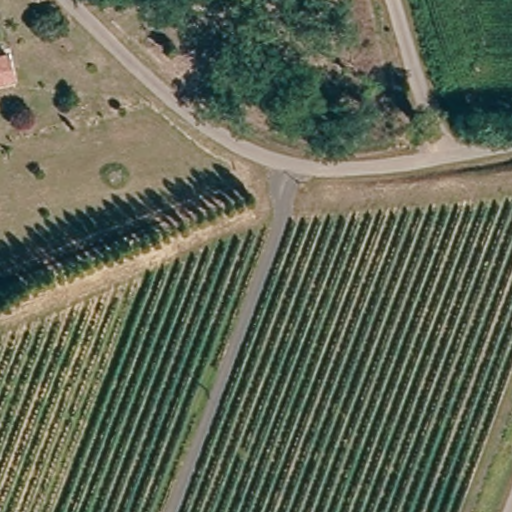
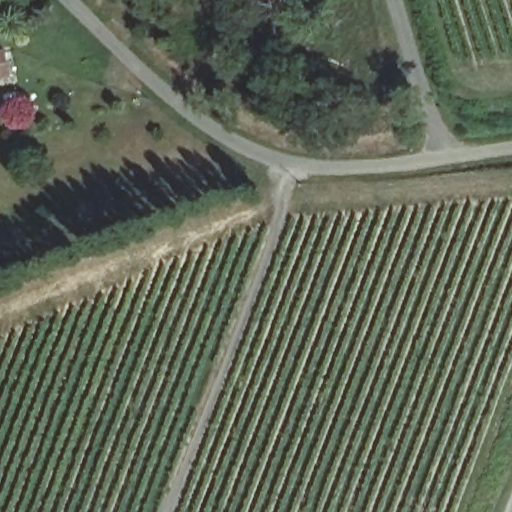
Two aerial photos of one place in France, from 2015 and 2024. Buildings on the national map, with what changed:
unchanged [(0,83),(0,58),(1,58),(2,83),(0,83)]

